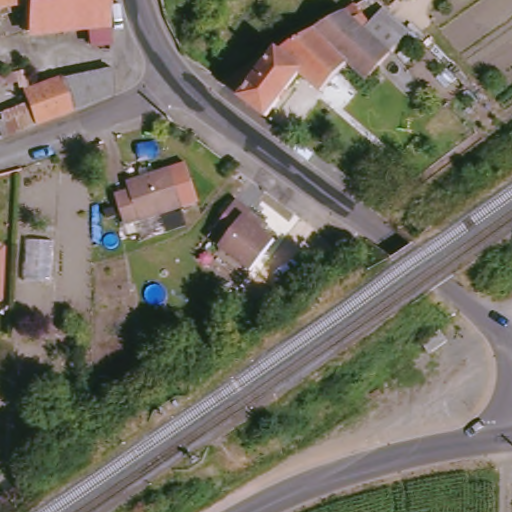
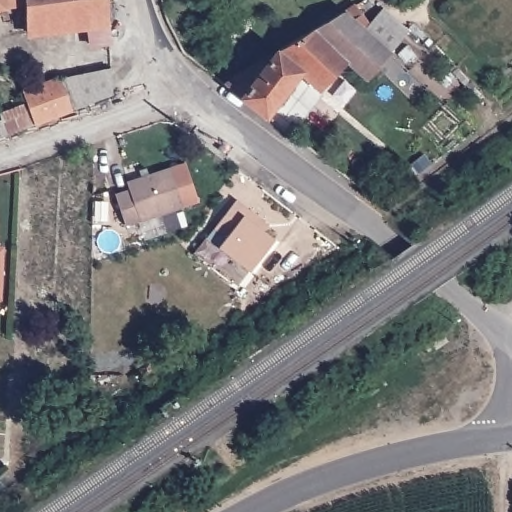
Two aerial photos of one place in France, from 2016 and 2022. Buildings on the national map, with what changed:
unchanged [(107,52),(90,54),(88,45),(86,45),(85,27),(23,33),(22,7),(0,11),(0,0),(105,0),(107,52)]
unchanged [(375,20),(378,15),(401,35),(388,50),(365,75),(352,63),(346,57),(311,25),(353,0),(375,20)]
unchanged [(221,81),(305,30),(311,25),(346,57),(318,88),(298,71),(263,114),(221,81)]
unchanged [(97,96),(70,107),(16,126),(5,131),(0,121),(0,109),(24,99),(20,89),(57,75),(57,76),(108,65),(110,91),(97,96)]
unchanged [(107,195),(121,191),(120,184),(177,165),(190,204),(118,227),(107,195)]
unchanged [(228,239),(216,229),(239,202),(250,211),(246,217),(277,242),(251,272),(221,247),(228,239)]
unchanged [(29,242),(54,243),(47,332),(23,331),(29,242)]
unchanged [(0,245),(5,245),(3,283),(2,296),(0,296),(0,245)]

